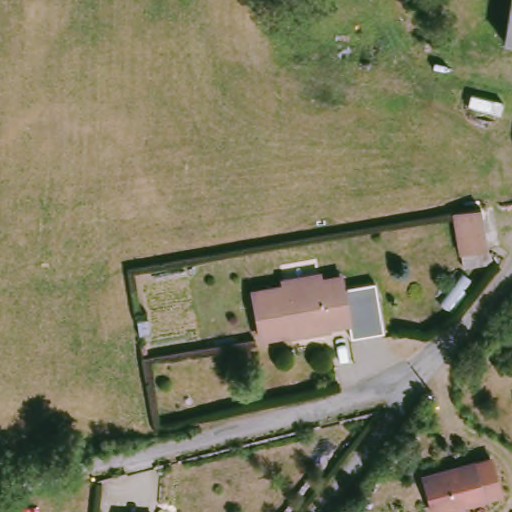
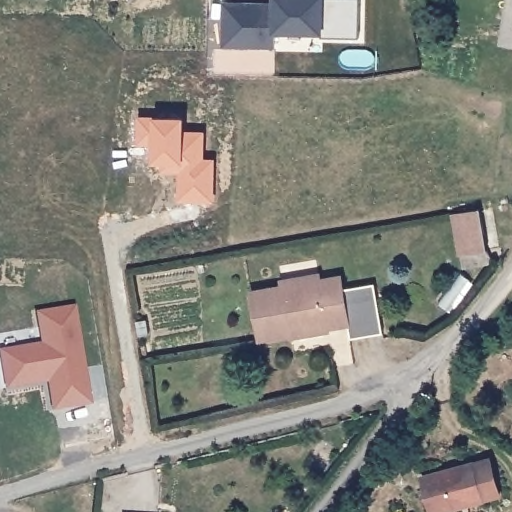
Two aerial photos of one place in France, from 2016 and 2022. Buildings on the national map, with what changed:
new [(340,37),(340,24),(323,23),(322,31),(275,29),(275,44),(223,41),(225,0),(235,0),(275,2),(275,0),(361,0),(359,38),(340,37)]
unchanged [(503,41),(509,0),(512,0),(512,43),(503,41)]
new [(322,36),(323,23),(340,24),(340,37),(322,36)]
new [(175,206),(177,176),(147,173),(147,148),(133,148),(133,115),(183,118),(182,132),(205,133),(203,158),(214,159),(211,206),(175,206)]
unchanged [(480,208),(487,250),(493,261),(463,268),(453,213),(480,208)]
unchanged [(260,338),(252,291),(284,286),(283,281),(318,275),(320,280),(340,276),(342,288),(375,283),(383,333),(350,338),(348,324),(327,327),(292,333),(260,338)]
new [(97,404),(52,411),(47,385),(7,389),(1,347),(41,340),(35,310),(77,303),(97,404)]
unchanged [(443,512),(427,512),(418,481),(485,463),(494,498),(443,512)]

